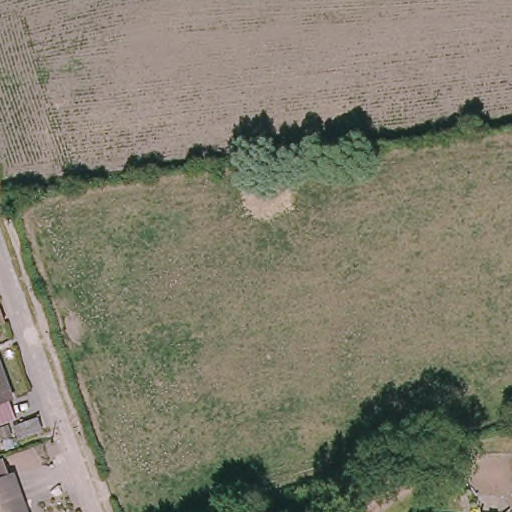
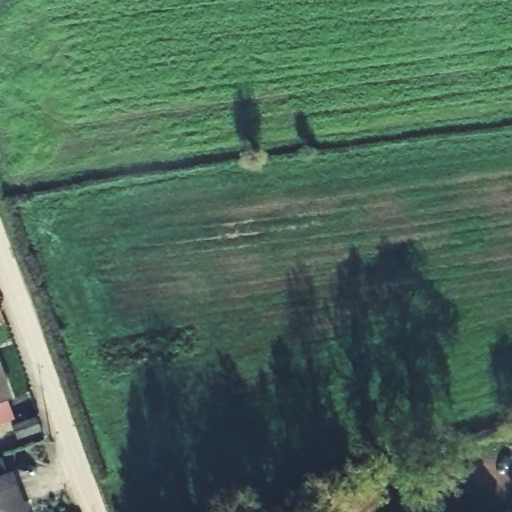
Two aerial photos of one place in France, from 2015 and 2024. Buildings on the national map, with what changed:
unchanged [(1,331),(0,331),(0,328),(1,331)]
unchanged [(17,410),(0,415),(0,364),(17,410)]
unchanged [(14,474),(28,512),(0,512),(0,479),(14,474)]

